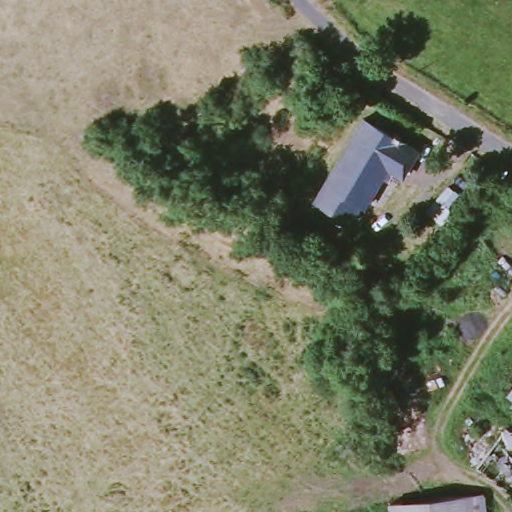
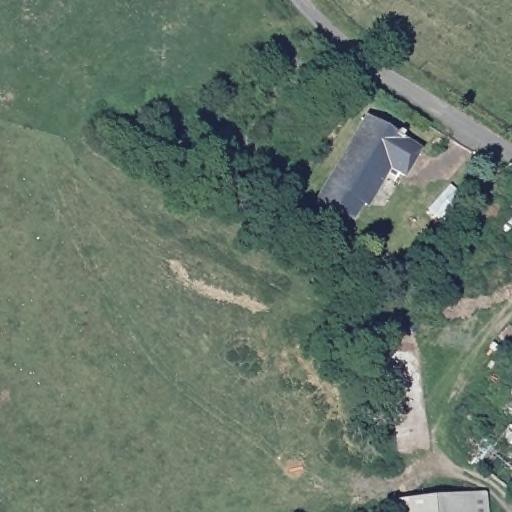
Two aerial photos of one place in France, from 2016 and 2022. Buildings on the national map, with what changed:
unchanged [(367,117),(419,149),(402,175),(394,170),(369,210),(365,207),(354,224),(315,200),(367,117)]
unchanged [(450,182),(467,196),(449,220),(431,207),(450,182)]
unchanged [(512,390),(512,397),(509,394),(512,390)]
unchanged [(485,492),(487,512),(387,512),(385,502),(485,492)]

